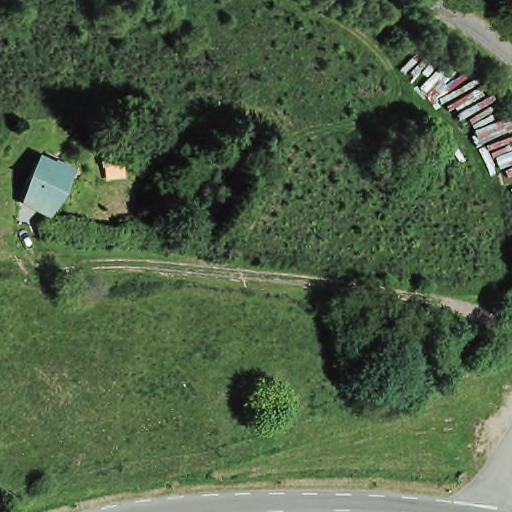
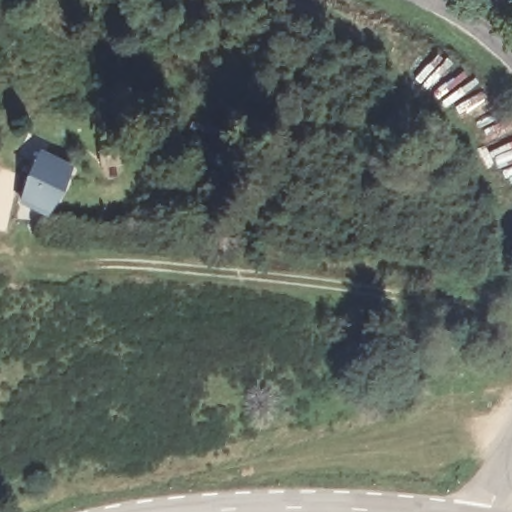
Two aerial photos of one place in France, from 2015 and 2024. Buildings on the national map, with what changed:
unchanged [(70,172),(45,216),(37,211),(35,214),(15,203),(25,186),(17,182),(30,160),(37,165),(41,159),(60,172),(63,166),(70,172)]

